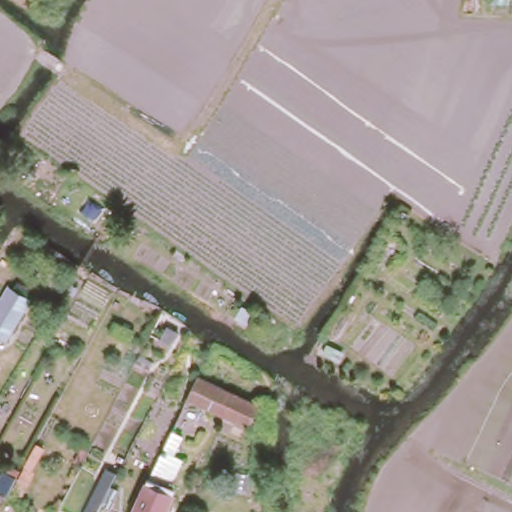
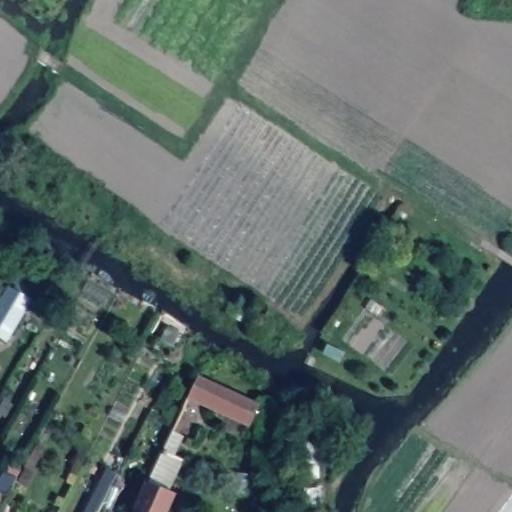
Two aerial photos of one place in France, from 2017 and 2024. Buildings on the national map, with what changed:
unchanged [(0,337),(0,296),(7,284),(29,297),(4,340),(0,337)]
unchanged [(166,356),(153,350),(157,342),(170,348),(166,356)]
unchanged [(197,402),(187,398),(198,374),(258,403),(247,426),(197,402)]
unchanged [(148,479),(162,447),(172,452),(177,454),(162,486),(173,491),(163,512),(132,512),(147,479),(148,479)]
unchanged [(20,470),(0,506),(0,476),(7,463),(20,470)]
unchanged [(112,479),(97,508),(95,512),(81,512),(101,473),(112,479)]

